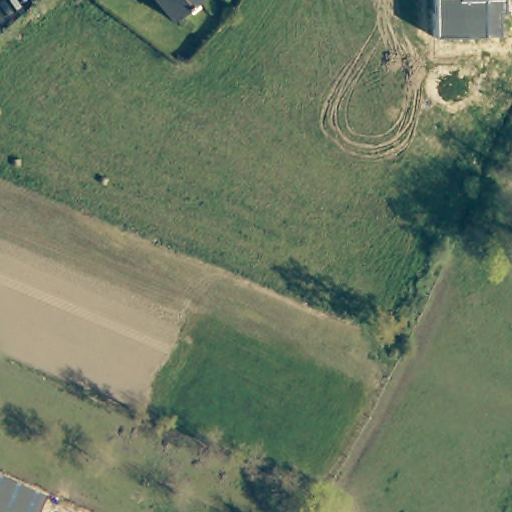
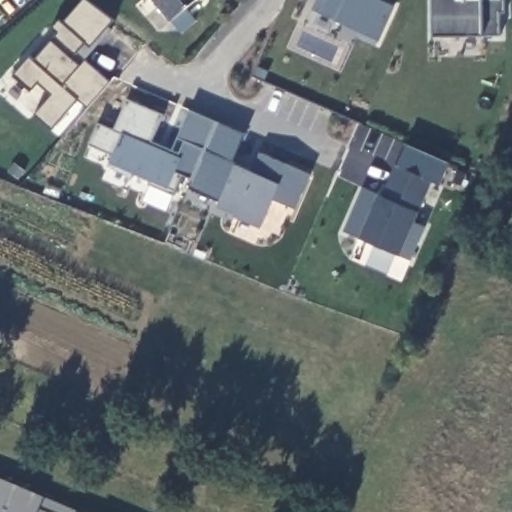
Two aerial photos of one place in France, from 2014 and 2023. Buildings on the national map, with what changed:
new [(108,27),(112,30),(86,60),(110,83),(88,107),(79,99),(52,130),(35,115),(53,95),(39,83),(31,91),(13,76),(30,57),(34,61),(53,41),(57,34),(52,30),(60,19),(64,23),(84,0),(86,0),(114,20),(108,27)]
unchanged [(200,0),(168,24),(150,0),(200,0)]
new [(381,41),(336,21),(312,10),(316,0),(383,0),(397,6),(381,41)]
unchanged [(500,13),(500,35),(483,36),(435,36),(435,0),(458,0),(504,0),(504,13),(500,13)]
new [(296,210),(273,199),(261,228),(234,217),(235,214),(218,206),(220,203),(189,189),(193,178),(183,175),(174,193),(152,184),(153,181),(111,163),(114,154),(91,144),(98,125),(114,131),(127,100),(162,115),(151,141),(180,153),(186,141),(178,137),(190,111),(245,134),(233,161),(238,165),(254,172),(259,153),(309,177),(296,210)]
new [(363,188),(383,196),(398,165),(407,144),(450,164),(442,184),(432,180),(415,222),(426,227),(410,260),(344,231),(363,188)]
unchanged [(44,497),(37,512),(0,512),(0,478),(44,497)]
unchanged [(77,512),(49,512),(39,508),(44,497),(77,512)]

